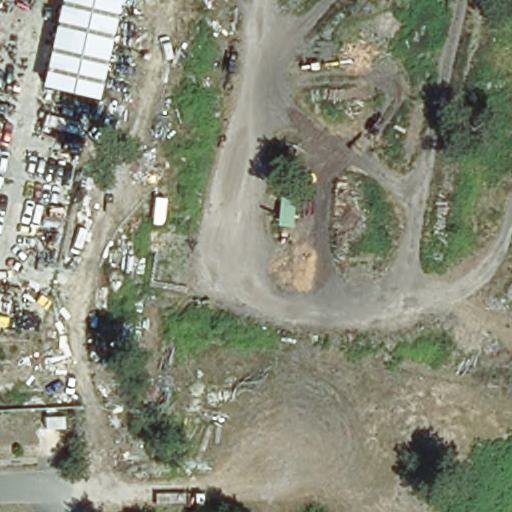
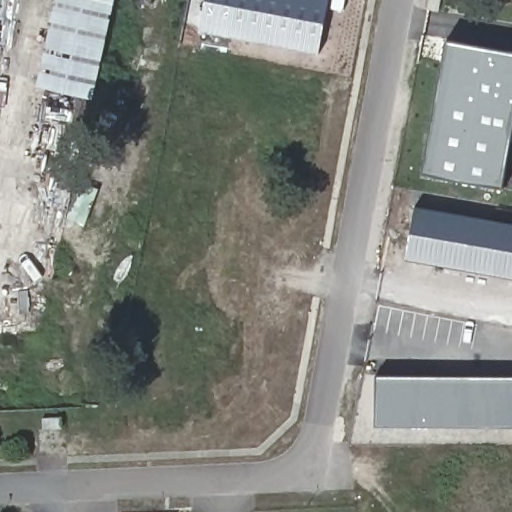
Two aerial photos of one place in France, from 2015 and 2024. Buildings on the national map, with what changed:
unchanged [(94,94),(44,84),(61,0),(115,0),(94,94)]
new [(318,52),(202,31),(207,0),(329,0),(318,52)]
new [(447,40),(512,52),(512,135),(503,187),(423,173),(447,40)]
new [(407,260),(417,208),(512,225),(512,278),(407,260)]
new [(378,376),(512,377),(512,429),(377,428),(378,376)]

